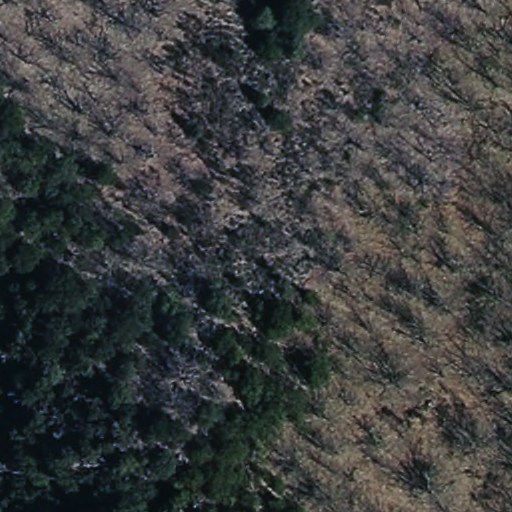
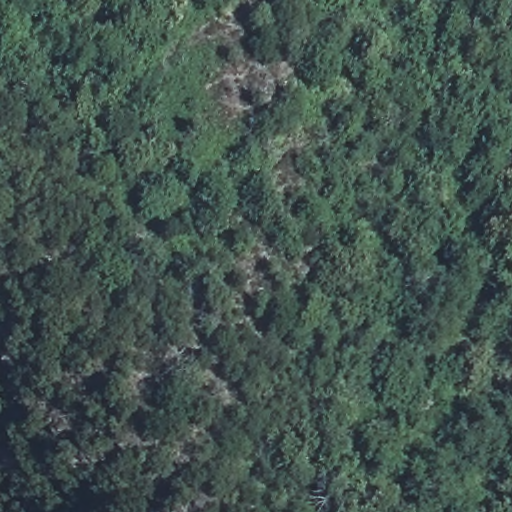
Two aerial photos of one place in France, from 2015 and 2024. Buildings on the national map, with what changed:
[]

